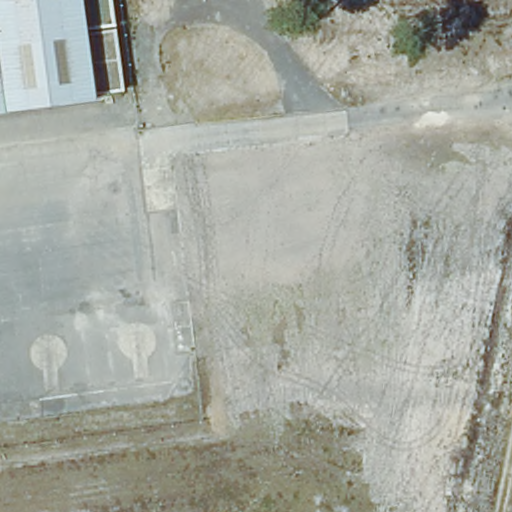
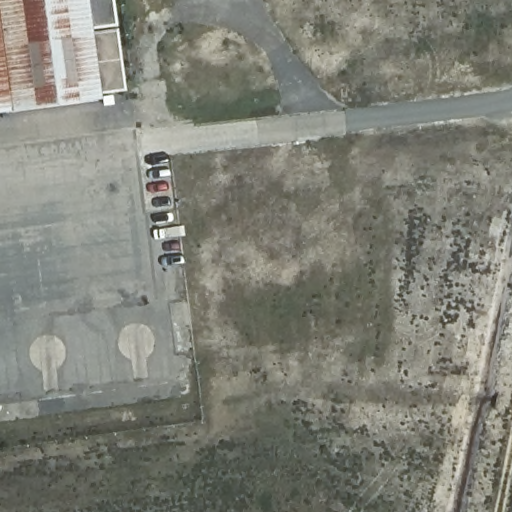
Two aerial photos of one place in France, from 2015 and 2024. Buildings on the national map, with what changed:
unchanged [(127,94),(100,101),(0,114),(0,0),(113,0),(127,94)]

